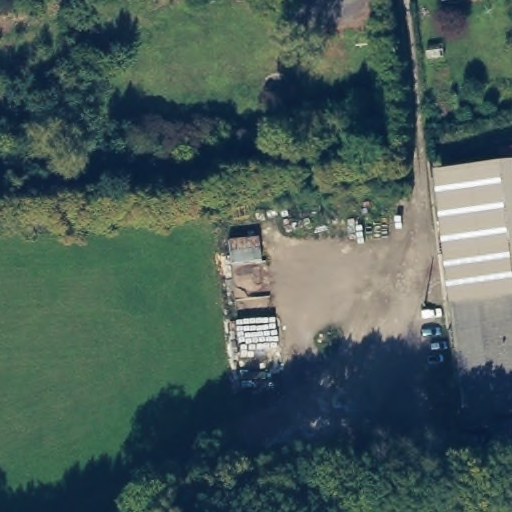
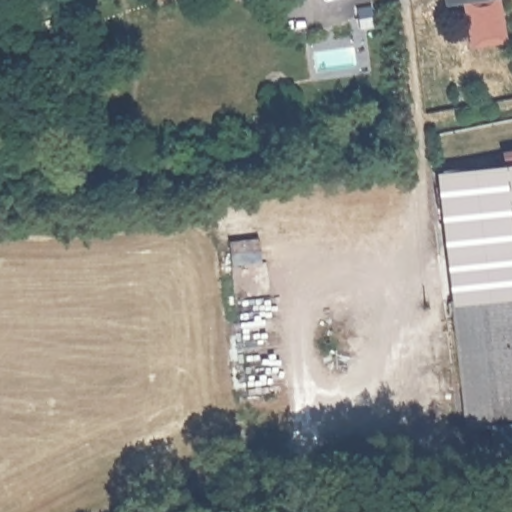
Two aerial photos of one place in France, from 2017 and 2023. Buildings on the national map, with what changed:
unchanged [(441,2),(441,0),(455,0),(441,2)]
unchanged [(512,161),(512,458),(495,460),(490,426),(463,430),(437,170),(512,161)]

